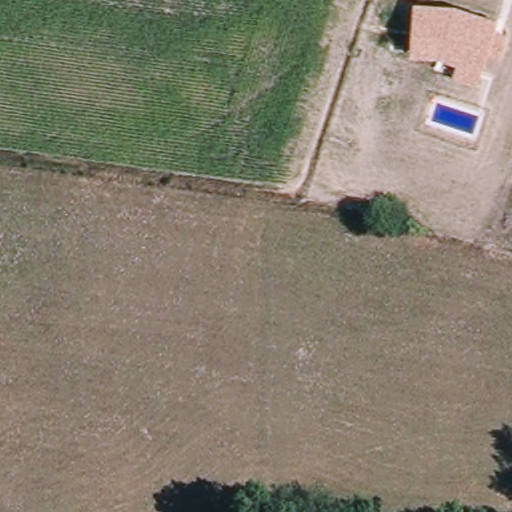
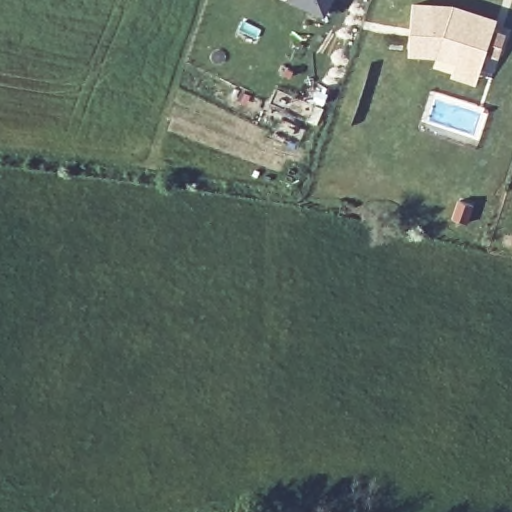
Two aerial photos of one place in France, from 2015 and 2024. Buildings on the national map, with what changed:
new [(325,14),(294,0),(331,0),(325,14)]
unchanged [(456,4),(499,18),(495,30),(508,34),(500,58),(488,54),(478,83),(453,75),(457,62),(439,56),(411,56),(414,2),(456,4)]

